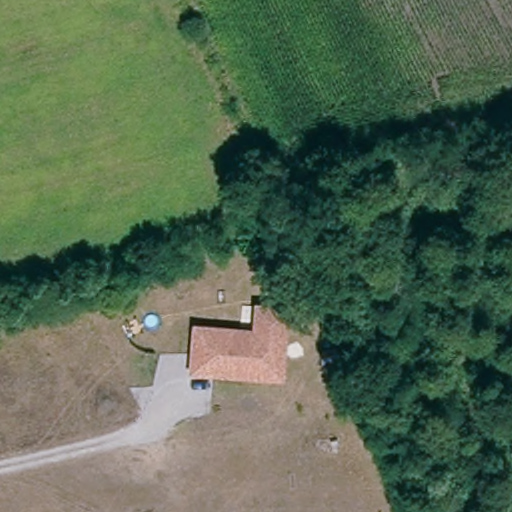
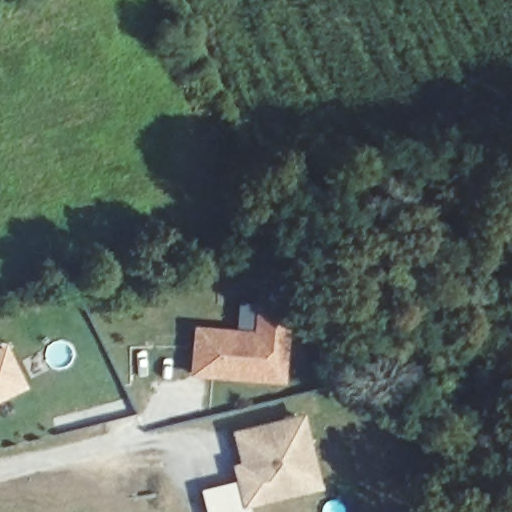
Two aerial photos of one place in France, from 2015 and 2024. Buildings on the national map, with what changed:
unchanged [(197,327),(241,331),(256,332),(258,306),(264,307),(288,308),(282,379),(214,374),(193,372),(195,342),(197,327)]
new [(0,401),(0,346),(6,343),(28,388),(0,401)]
new [(245,470),(237,437),(302,421),(308,448),(318,490),(303,493),(247,507),(248,512),(209,512),(205,496),(224,491),(241,487),(237,472),(245,470)]

